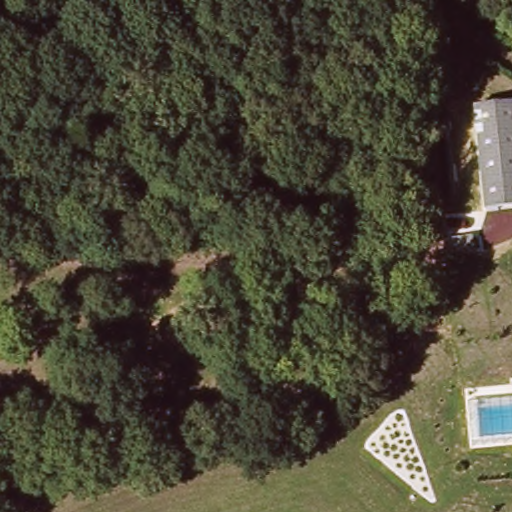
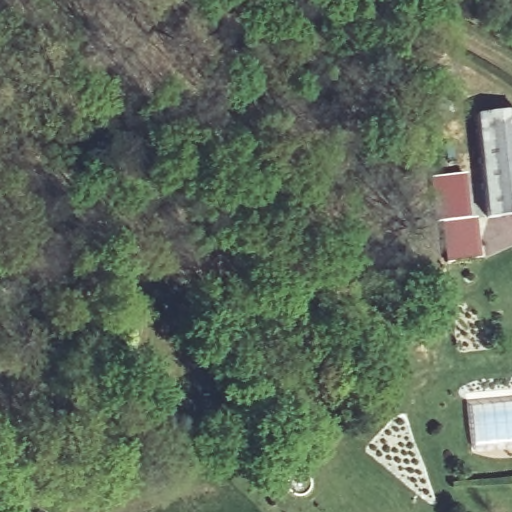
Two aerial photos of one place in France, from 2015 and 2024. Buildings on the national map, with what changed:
unchanged [(475,119),(512,114),(512,212),(488,217),(475,119)]
new [(468,219),(474,218),(479,259),(445,263),(440,222),(433,222),(429,177),(464,174),(468,219)]
demolished [(480,282),(481,298),(441,303),(441,297),(439,287),(480,282)]

